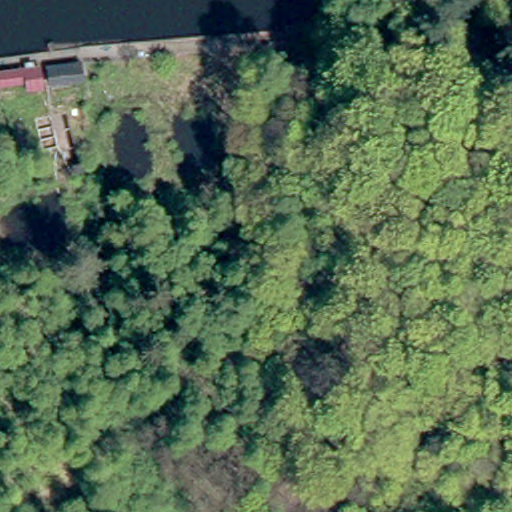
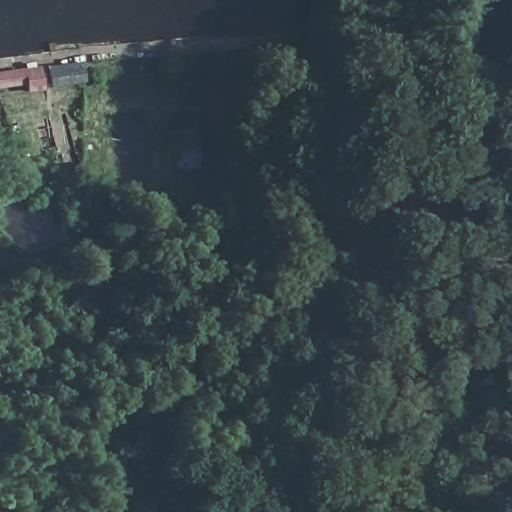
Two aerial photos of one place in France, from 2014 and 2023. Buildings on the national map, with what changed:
unchanged [(50,71),(82,67),(85,82),(39,89),(35,64),(50,62),(50,71)]
unchanged [(0,94),(0,69),(28,65),(33,89),(0,94)]

